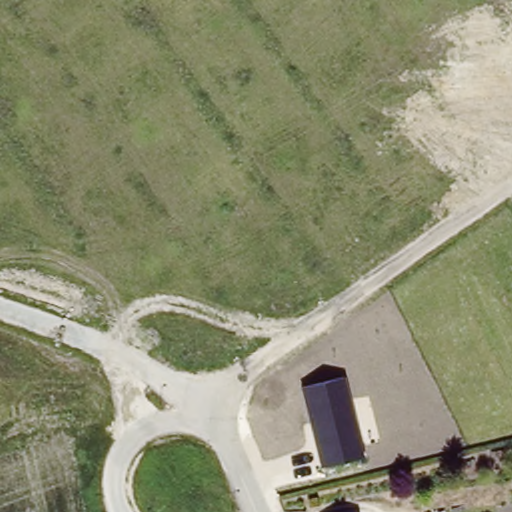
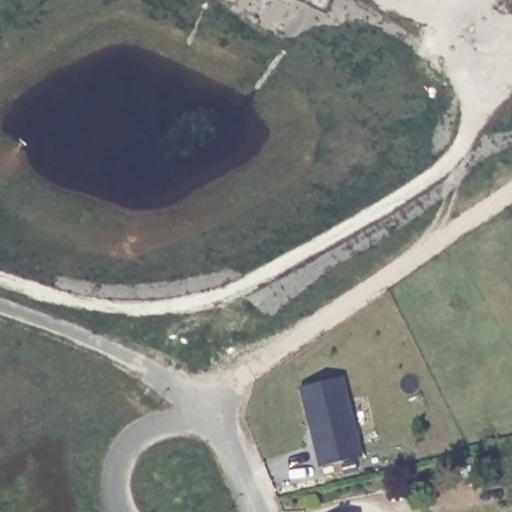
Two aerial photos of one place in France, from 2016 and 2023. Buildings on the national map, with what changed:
unchanged [(345,376),(365,458),(320,468),(300,386),(345,376)]
unchanged [(459,475),(452,488),(440,483),(447,469),(459,475)]

